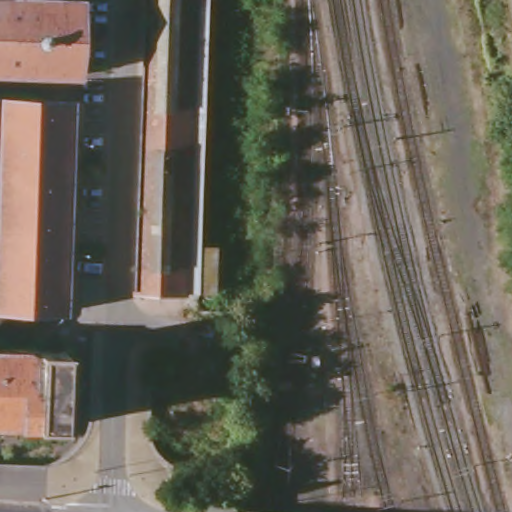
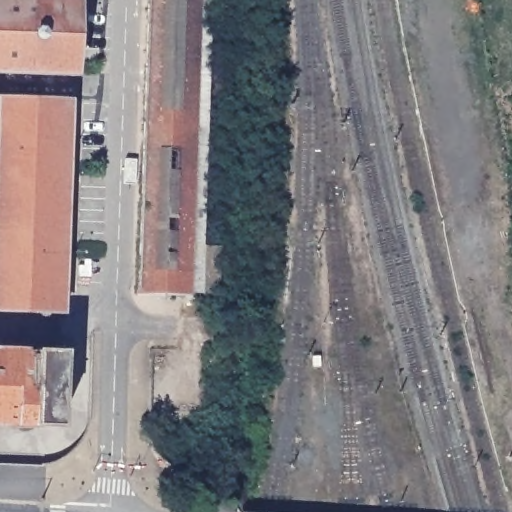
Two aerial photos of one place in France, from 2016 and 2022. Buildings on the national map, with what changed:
unchanged [(73,66),(74,69),(71,69),(71,74),(1,71),(1,74),(0,74),(0,0),(77,0),(77,3),(74,2),(71,66),(73,66)]
unchanged [(142,293),(153,0),(203,0),(193,295),(142,293)]
unchanged [(57,308),(0,305),(0,92),(65,95),(60,308),(57,308)]
unchanged [(32,424),(0,423),(0,351),(60,353),(65,353),(63,425),(32,424)]

